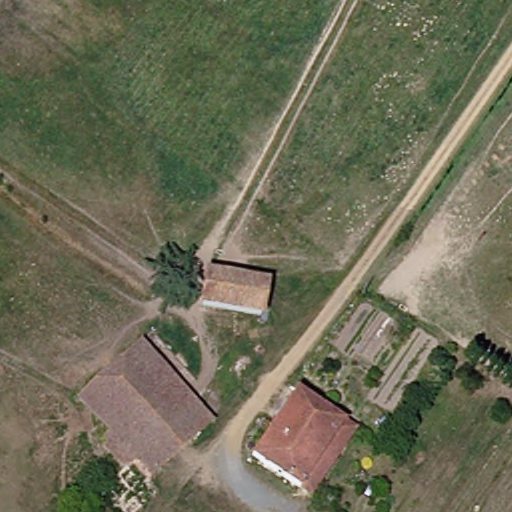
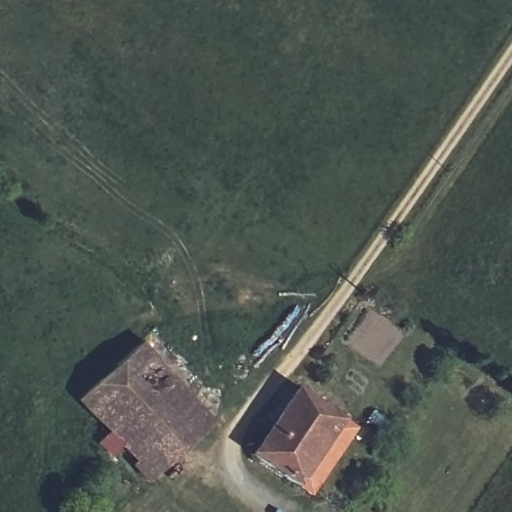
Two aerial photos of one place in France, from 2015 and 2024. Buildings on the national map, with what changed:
demolished [(260,311),(197,305),(201,274),(264,281),(260,311)]
unchanged [(112,470),(120,462),(96,439),(109,425),(81,398),(140,346),(191,396),(133,458),(151,476),(157,482),(130,512),(117,512),(102,500),(108,494),(99,484),(112,470)]
unchanged [(248,456),(291,391),(335,418),(292,484),(248,456)]
unchanged [(210,414),(151,476),(133,458),(191,396),(210,414)]
unchanged [(348,427),(305,493),(292,484),(335,418),(348,427)]

